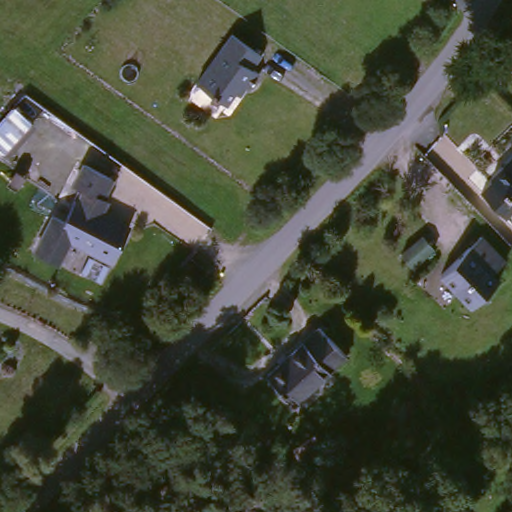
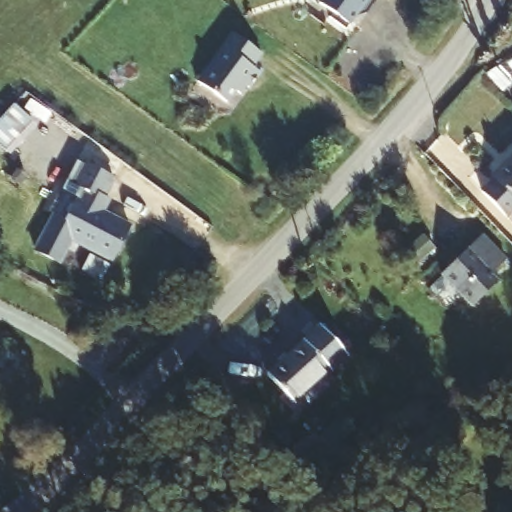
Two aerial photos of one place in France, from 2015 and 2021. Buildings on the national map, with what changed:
new [(363,9),(348,29),(331,17),(333,14),(318,4),(321,0),(376,0),(366,11),(363,9)]
unchanged [(233,24),(261,46),(258,51),(253,58),(261,64),(250,79),(247,77),(241,86),(236,82),(228,94),(198,73),(226,34),(233,24)]
unchanged [(62,261),(36,247),(61,200),(71,206),(84,184),(76,177),(88,159),(118,174),(108,188),(115,192),(108,205),(133,218),(112,256),(74,240),(62,261)]
unchanged [(484,193),(497,182),(494,180),(512,165),(512,213),(506,219),(484,193)]
unchanged [(383,260),(404,242),(416,256),(395,273),(383,260)]
unchanged [(503,272),(489,285),(494,292),(466,318),(438,285),(479,247),(503,272)]
unchanged [(344,369),(291,412),(265,380),(318,337),(344,369)]

